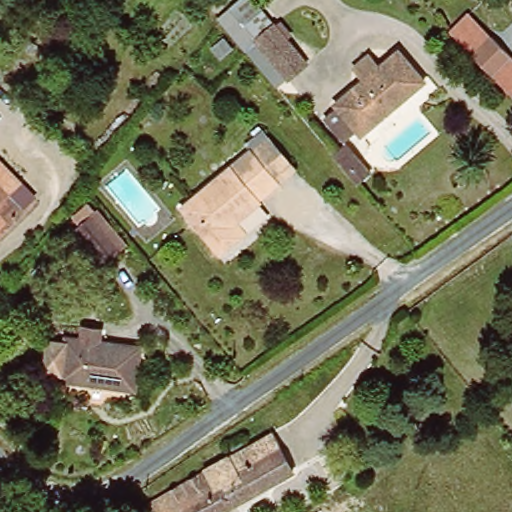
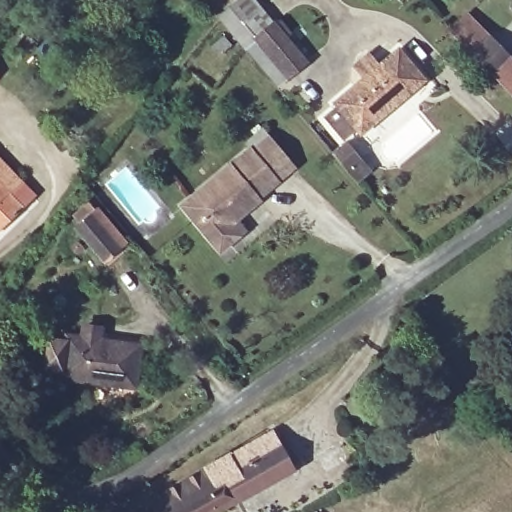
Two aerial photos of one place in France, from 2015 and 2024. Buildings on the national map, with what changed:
unchanged [(512,94),(450,30),(467,10),(512,57),(512,94)]
unchanged [(254,41),(239,54),(213,23),(229,11),(254,41)]
unchanged [(306,58),(284,76),(254,41),(276,23),(306,58)]
unchanged [(431,70),(367,124),(363,120),(353,130),(334,106),(346,96),(343,94),(406,41),(431,70)]
unchanged [(350,138),(363,154),(350,164),(337,149),(350,138)]
unchanged [(257,207),(230,228),(238,240),(219,255),(182,209),(250,154),(251,156),(269,142),(293,171),(277,185),(256,204),(257,207)]
unchanged [(0,227),(0,170),(28,201),(0,227)]
unchanged [(108,265),(73,225),(91,210),(126,248),(108,265)]
unchanged [(55,346),(70,347),(70,342),(88,343),(89,332),(102,332),(101,345),(146,348),(142,391),(66,384),(67,377),(53,376),(55,346)]
unchanged [(154,501),(275,429),(295,465),(216,512),(161,512),(154,501)]

